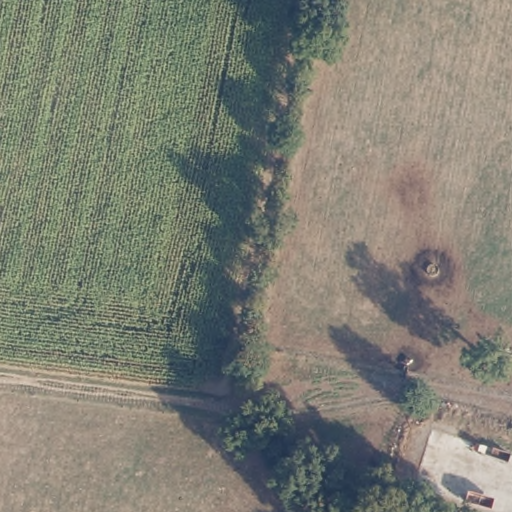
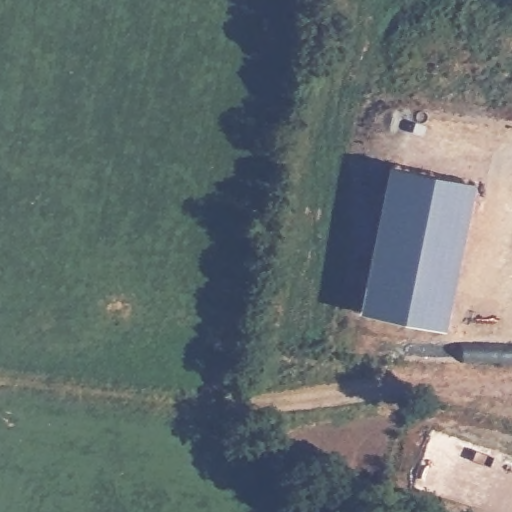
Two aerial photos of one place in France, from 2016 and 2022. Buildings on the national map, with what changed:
new [(476,181),(446,328),(360,311),(389,163),(476,181)]

